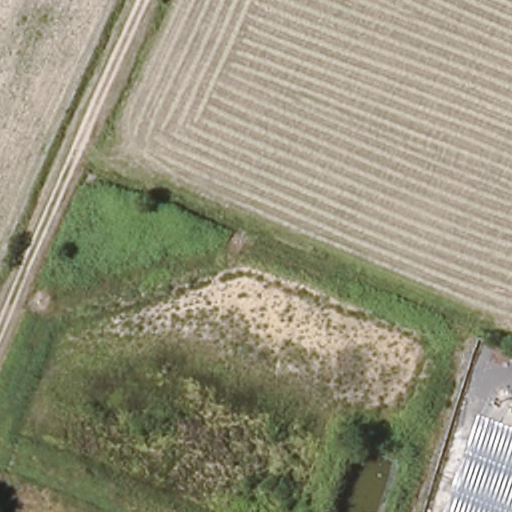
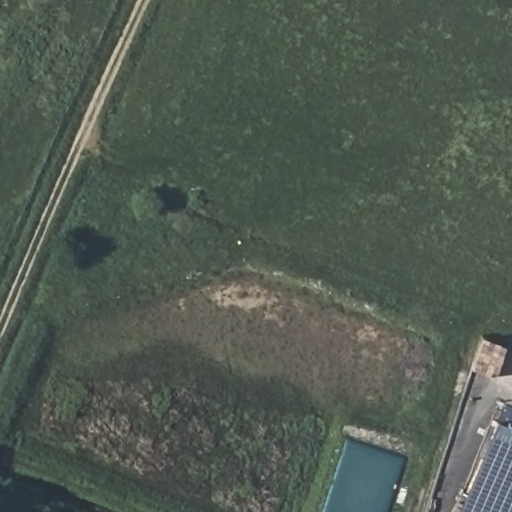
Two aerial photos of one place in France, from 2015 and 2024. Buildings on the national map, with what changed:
unchanged [(490,419),(499,401),(512,406),(512,512),(455,512),(490,419)]

